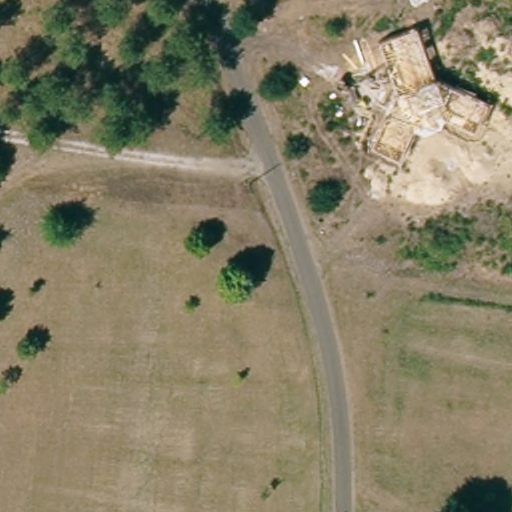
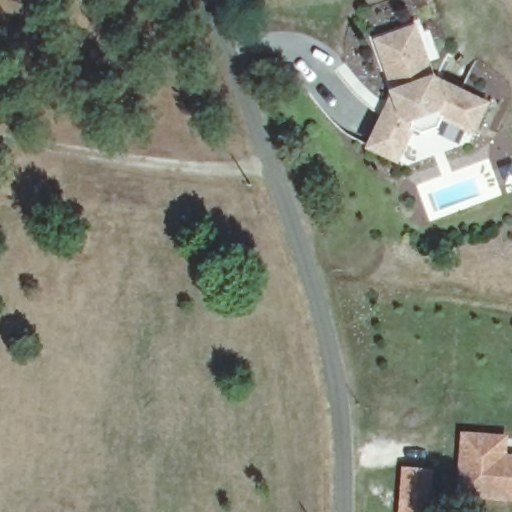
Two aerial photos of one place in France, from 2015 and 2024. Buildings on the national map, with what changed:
new [(475,135),(444,119),(440,126),(422,134),(414,129),(399,162),(365,147),(391,90),(374,39),(418,24),(436,74),(491,102),(475,135)]
new [(461,431),(508,434),(508,454),(512,454),(512,500),(456,497),(461,431)]
new [(434,468),(431,512),(400,512),(403,466),(434,468)]

